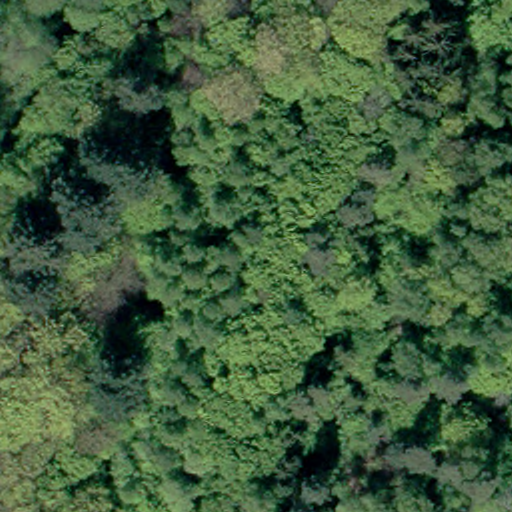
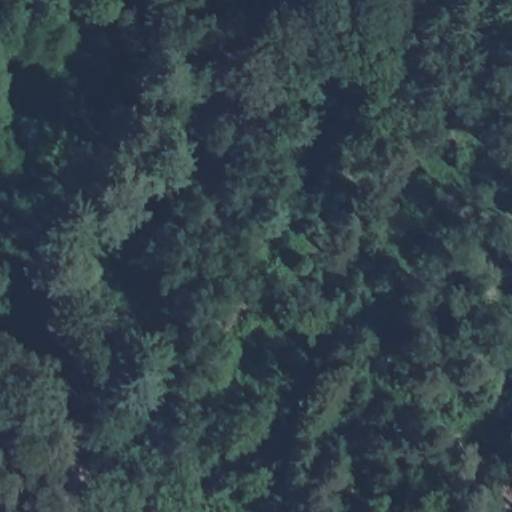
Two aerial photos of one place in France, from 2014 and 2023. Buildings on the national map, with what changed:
[]

